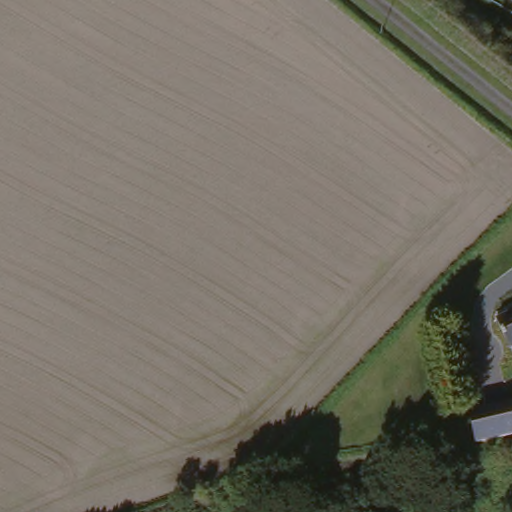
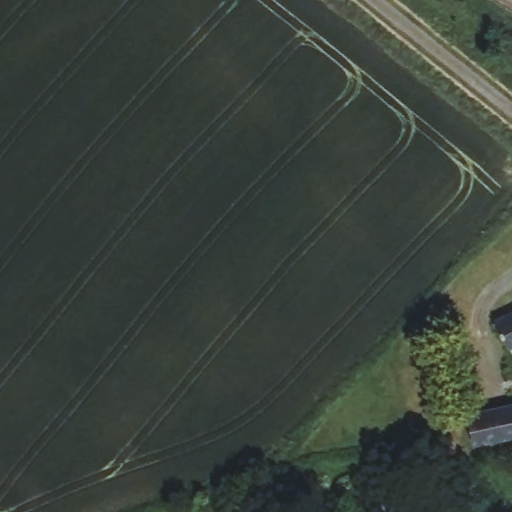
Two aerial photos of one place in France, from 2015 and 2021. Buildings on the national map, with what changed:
unchanged [(491,322),(512,312),(512,347),(505,350),(491,322)]
unchanged [(512,436),(480,443),(473,417),(512,407),(512,436)]

